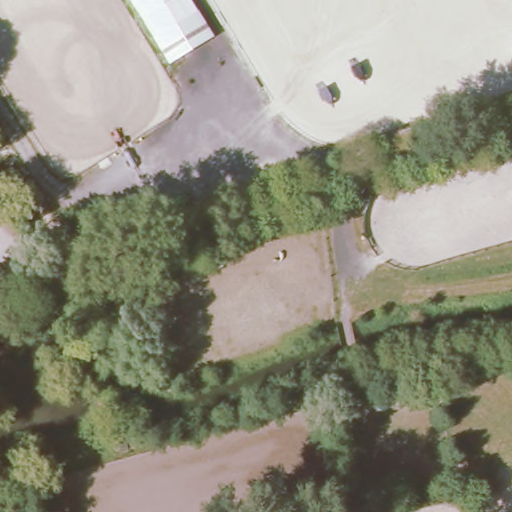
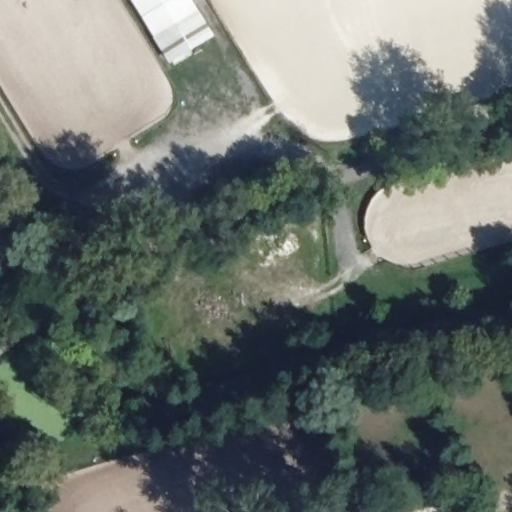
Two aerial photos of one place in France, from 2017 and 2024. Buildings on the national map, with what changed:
unchanged [(169,65),(130,0),(192,0),(215,37),(169,65)]

